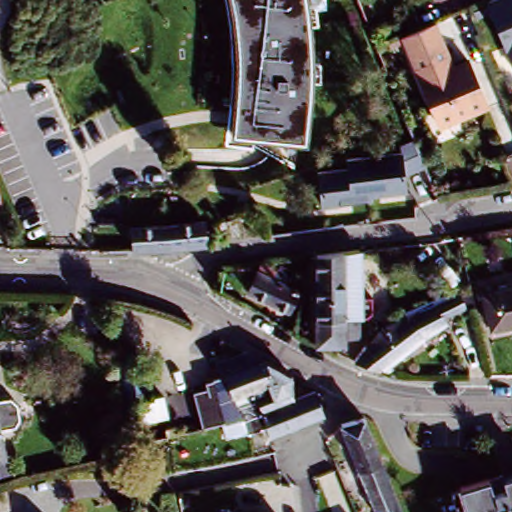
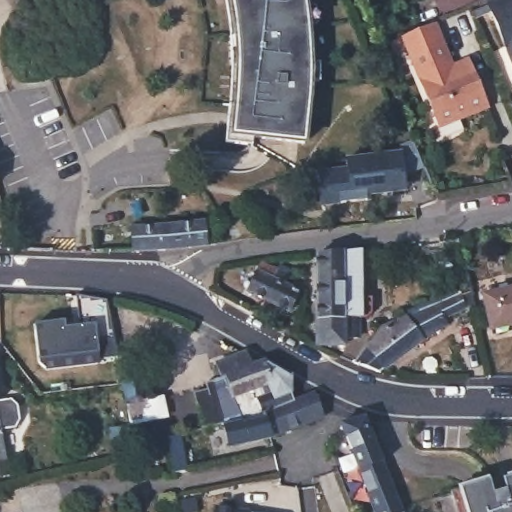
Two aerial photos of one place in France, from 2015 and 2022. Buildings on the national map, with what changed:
unchanged [(234,78),(234,52),(233,34),(231,11),(229,0),(307,0),(308,7),(312,43),(311,80),(306,143),(231,136),(233,105),(234,78)]
unchanged [(511,72),(480,0),(512,0),(512,72),(511,72)]
unchanged [(435,15),(454,56),(469,52),(491,106),(431,125),(395,31),(435,15)]
unchanged [(318,171),(345,167),(344,159),(403,152),(408,191),(371,195),(371,200),(321,205),(318,171)]
unchanged [(166,250),(130,252),(128,230),(201,225),(203,247),(166,250)]
unchanged [(306,300),(306,295),(306,278),(306,258),(324,257),(348,254),(348,278),(348,300),(356,300),(356,313),(348,313),(348,322),(347,340),(332,341),(332,349),(310,350),(305,348),(305,322),(306,300)]
unchanged [(285,314),(245,290),(256,274),(263,265),(265,265),(277,271),(287,277),(281,288),(295,296),(285,314)]
unchanged [(491,332),(485,300),(512,294),(512,328),(491,332)]
new [(100,358),(100,361),(46,368),(40,363),(38,357),(35,324),(64,320),(65,319),(65,327),(82,325),(76,295),(106,300),(117,353),(100,358)]
unchanged [(365,350),(378,327),(455,295),(459,306),(436,317),(438,323),(380,375),(356,368),(355,365),(362,348),(365,350)]
unchanged [(165,410),(129,417),(126,400),(125,400),(116,357),(135,353),(143,397),(162,393),(165,410)]
unchanged [(229,441),(225,426),(220,408),(260,399),(258,391),(228,398),(222,375),(219,376),(215,363),(246,354),(263,363),(290,380),(290,389),(290,394),(293,403),(312,395),(320,413),(322,418),(321,418),(291,431),(270,440),(267,433),(250,437),(229,441)]
unchanged [(203,429),(194,393),(206,389),(204,380),(219,376),(222,375),(228,398),(258,391),(260,399),(220,408),(224,422),(203,429)]
unchanged [(0,481),(0,380),(16,478),(0,481)]
unchanged [(393,482),(404,512),(378,512),(368,486),(345,427),(368,419),(393,482)]
unchanged [(457,487),(490,477),(495,493),(507,490),(504,478),(512,475),(512,512),(465,512),(457,487)]
unchanged [(215,510),(228,512),(215,512),(215,510)]

